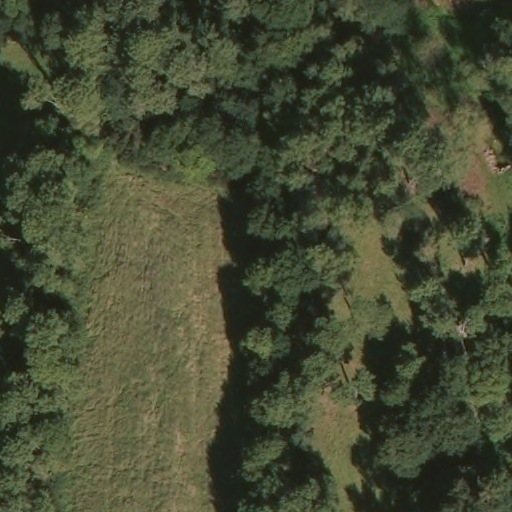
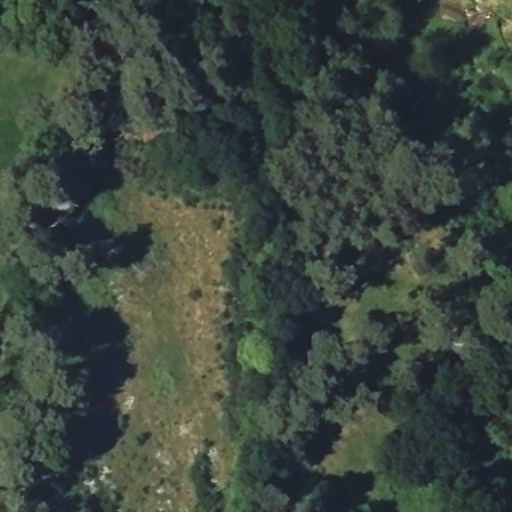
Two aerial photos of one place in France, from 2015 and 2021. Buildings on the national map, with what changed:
[]

